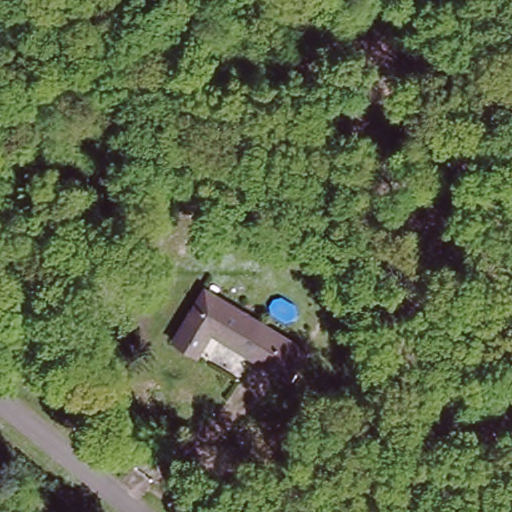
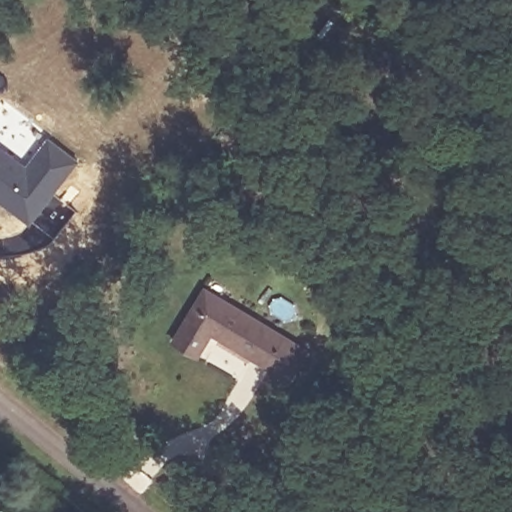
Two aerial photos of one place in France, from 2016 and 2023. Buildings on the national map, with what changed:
new [(0,146),(27,166),(49,138),(79,161),(30,224),(0,200),(0,146)]
unchanged [(215,331),(200,353),(172,342),(205,278),(299,337),(280,371),(215,331)]

